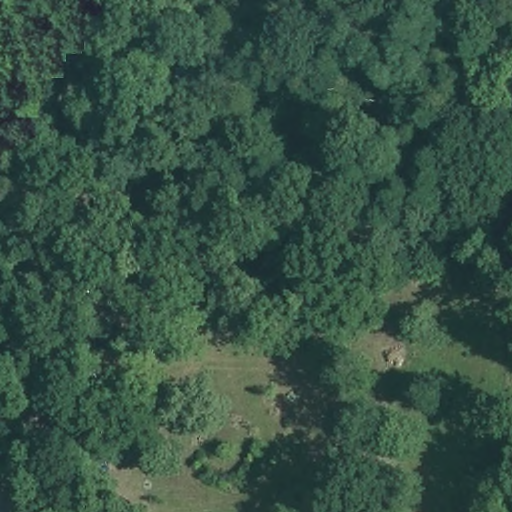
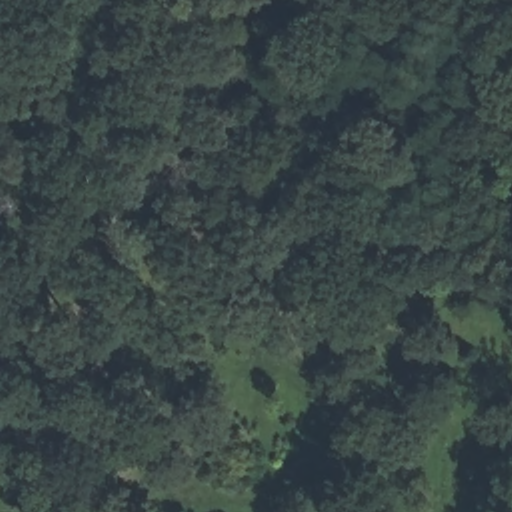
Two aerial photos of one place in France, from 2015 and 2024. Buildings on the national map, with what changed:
unchanged [(87,512),(72,512),(86,511),(87,512)]

